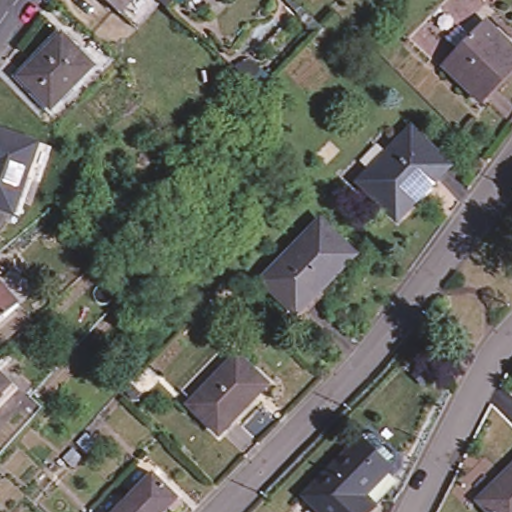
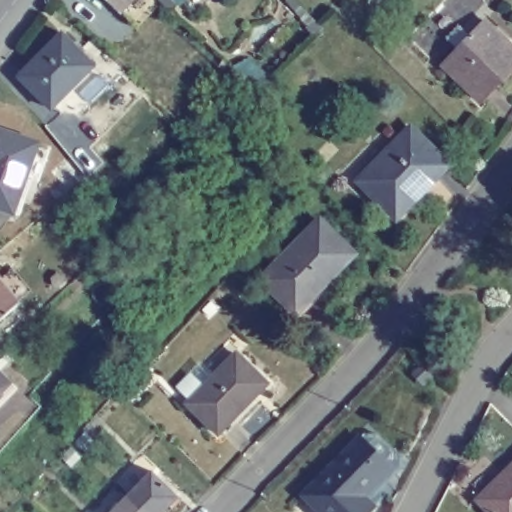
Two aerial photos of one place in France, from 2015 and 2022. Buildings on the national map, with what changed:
unchanged [(113,8),(104,0),(120,0),(113,8)]
unchanged [(482,18),(512,50),(512,63),(475,97),(439,59),(482,18)]
unchanged [(58,30),(90,61),(47,100),(17,70),(58,30)]
unchanged [(408,121),(445,158),(394,214),(355,176),(408,121)]
unchanged [(52,155),(44,175),(35,179),(30,177),(15,211),(0,205),(0,122),(45,142),(52,155)]
unchanged [(315,215),(349,250),(292,309),(258,275),(315,215)]
unchanged [(22,271),(31,263),(45,276),(35,285),(32,281),(0,312),(0,251),(1,250),(22,271)]
unchanged [(234,350),(264,378),(215,429),(185,400),(234,350)]
unchanged [(0,376),(0,361),(7,367),(0,376)]
unchanged [(157,410),(167,420),(160,428),(150,418),(157,410)]
unchanged [(392,473),(353,512),(318,512),(294,488),(350,431),(392,473)]
unchanged [(492,512),(474,492),(512,455),(512,512),(492,512)]
unchanged [(175,493),(156,512),(142,512),(124,493),(150,468),(175,493)]
unchanged [(104,512),(124,493),(142,512),(104,512)]

